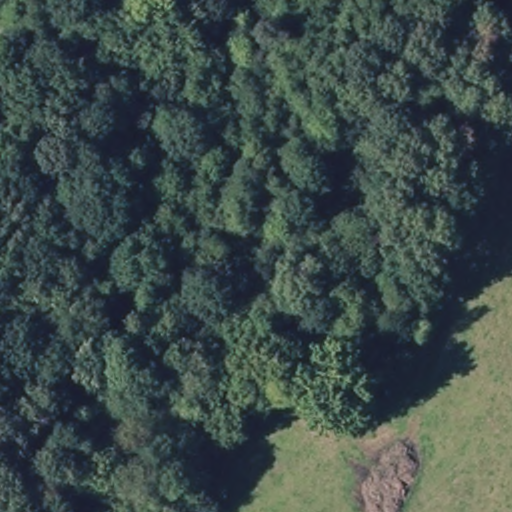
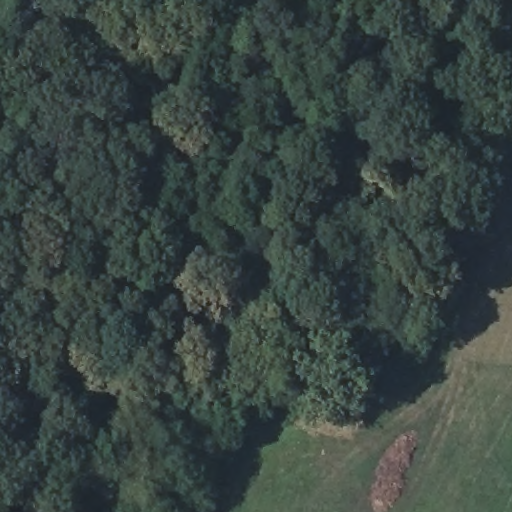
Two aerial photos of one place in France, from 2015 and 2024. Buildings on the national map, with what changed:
[]

